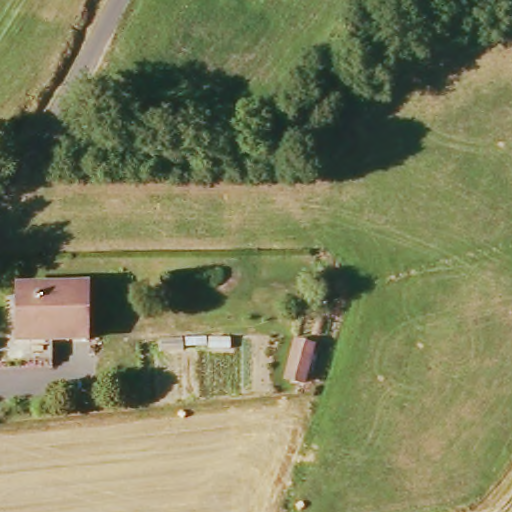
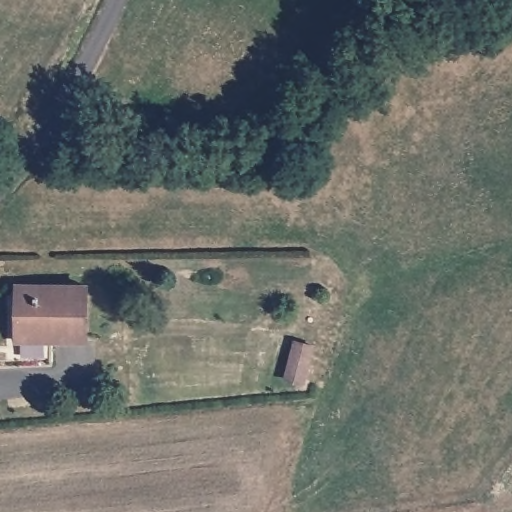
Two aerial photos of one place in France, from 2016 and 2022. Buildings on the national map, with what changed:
unchanged [(86,341),(17,345),(15,290),(83,287),(86,341)]
unchanged [(303,388),(286,383),(297,346),(313,351),(303,388)]

